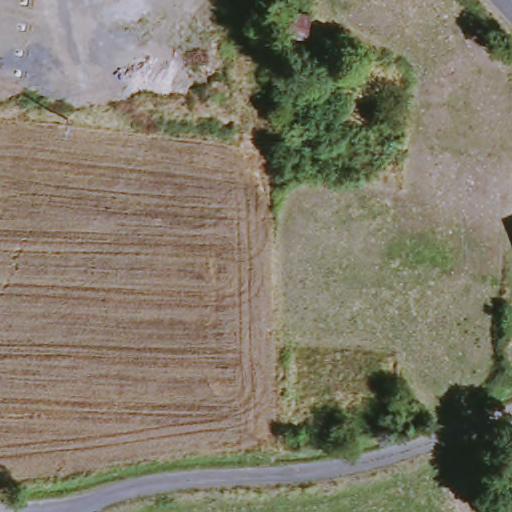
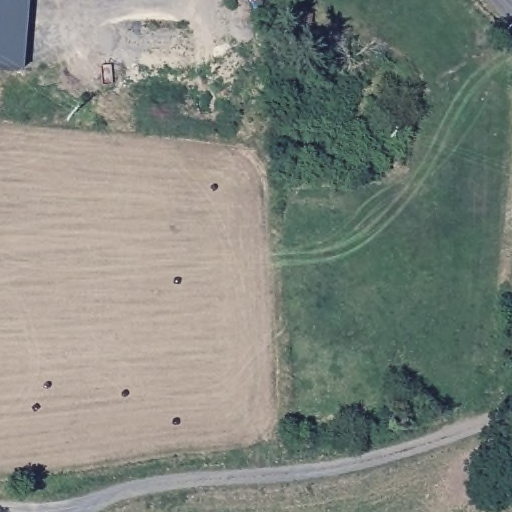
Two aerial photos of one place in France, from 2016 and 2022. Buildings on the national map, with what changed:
new [(27,0),(21,74),(0,72),(0,0),(27,0)]
unchanged [(299,14),(301,0),(318,0),(315,16),(299,14)]

